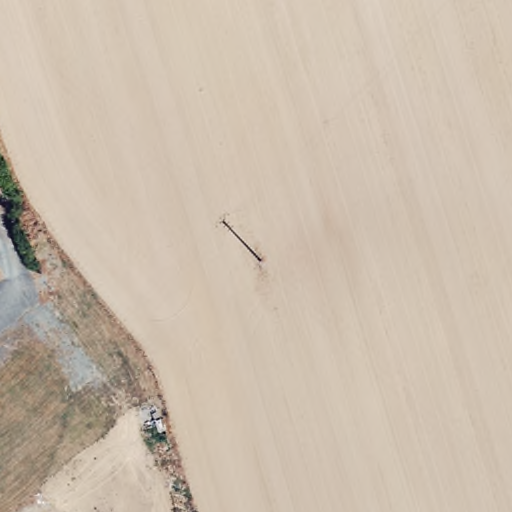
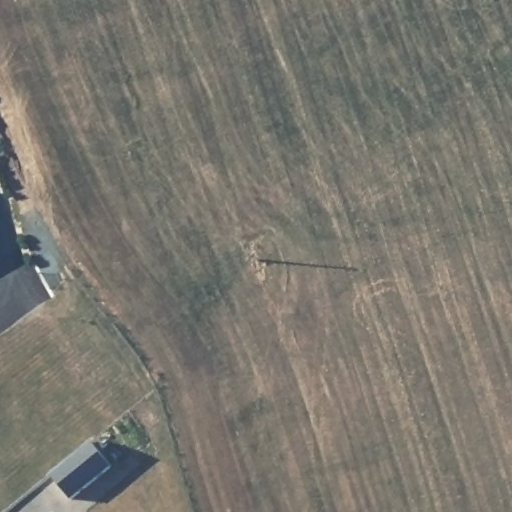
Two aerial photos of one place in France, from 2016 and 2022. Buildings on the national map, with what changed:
new [(53,475),(91,443),(111,468),(73,500),(53,475)]

